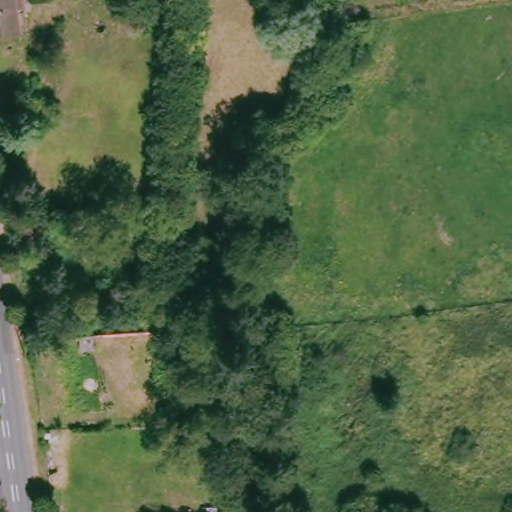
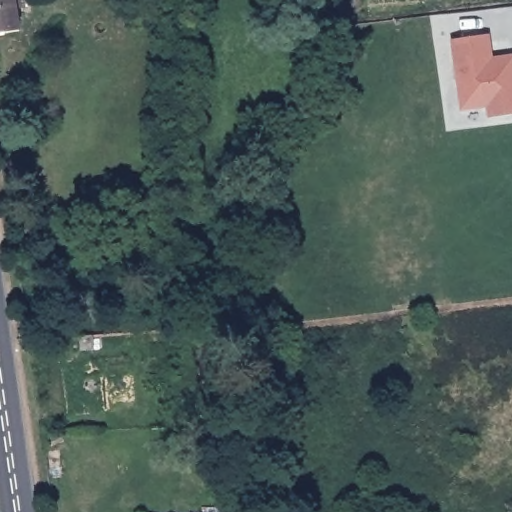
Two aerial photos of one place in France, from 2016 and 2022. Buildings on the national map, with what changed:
unchanged [(14,5),(18,27),(0,30),(0,0),(21,0),(21,4),(14,5)]
new [(489,117),(488,107),(462,111),(453,40),(491,34),(494,56),(512,54),(512,114),(489,117)]
unchanged [(39,218),(41,235),(26,236),(25,220),(39,218)]
unchanged [(92,337),(93,348),(79,348),(78,337),(92,337)]

